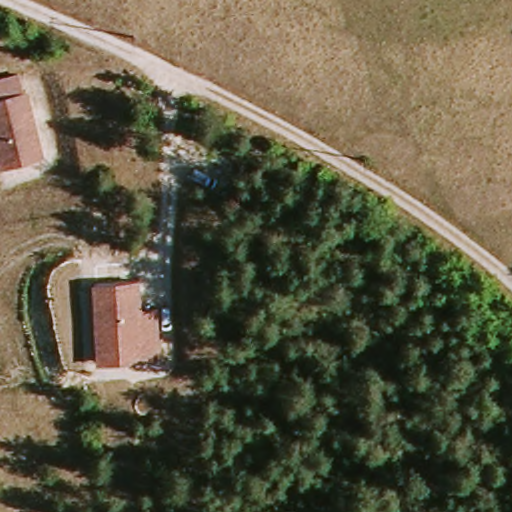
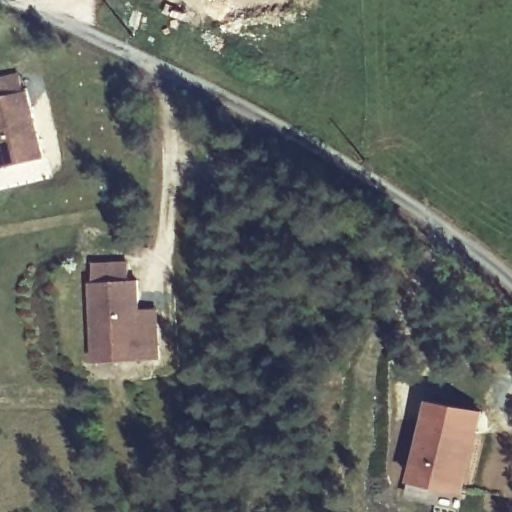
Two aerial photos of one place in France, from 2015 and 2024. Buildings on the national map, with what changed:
unchanged [(29,88),(45,158),(0,169),(0,95),(29,88)]
unchanged [(137,280),(138,310),(159,308),(161,355),(96,360),(91,283),(137,280)]
new [(486,411),(467,494),(414,483),(431,399),(486,411)]

